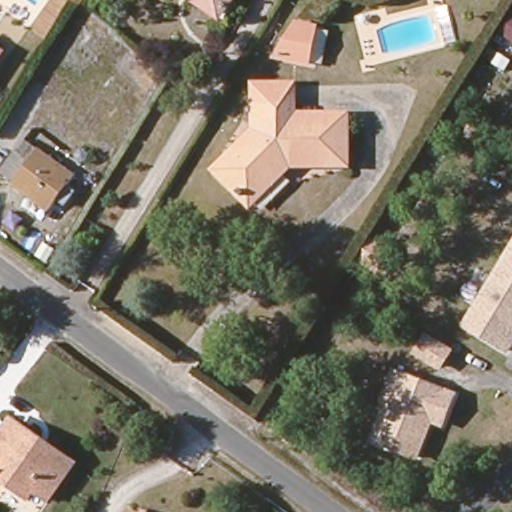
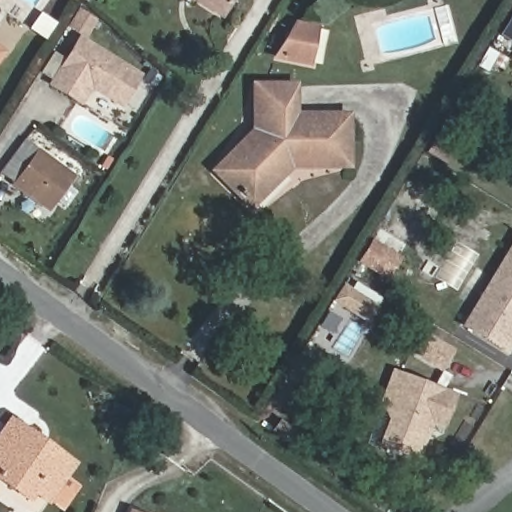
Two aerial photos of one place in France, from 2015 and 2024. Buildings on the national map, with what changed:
unchanged [(65,11),(71,0),(85,0),(90,3),(89,6),(80,20),(65,11)]
unchanged [(201,2),(198,0),(232,0),(222,16),(201,2)]
unchanged [(512,12),(512,42),(499,34),(512,12)]
unchanged [(297,52),(273,52),(293,20),(311,31),(297,52)]
new [(122,104),(91,85),(81,102),(52,85),(81,39),(139,76),(122,104)]
unchanged [(0,48),(4,50),(0,55),(0,48)]
unchanged [(349,167),(292,167),(252,207),(218,172),(257,132),(257,89),(296,88),(296,118),(349,118),(349,167)]
unchanged [(39,138),(29,132),(46,109),(55,115),(39,138)]
unchanged [(74,189),(62,205),(53,198),(46,207),(10,182),(11,181),(0,172),(0,167),(22,138),(71,174),(65,182),(74,189)]
unchanged [(512,239),(512,346),(507,355),(459,328),(512,239)]
new [(366,242),(381,251),(370,268),(356,259),(366,242)]
unchanged [(457,395),(446,428),(431,425),(418,462),(377,447),(388,421),(377,399),(391,371),(457,395)]
unchanged [(44,448),(47,443),(71,460),(45,498),(31,488),(25,497),(9,485),(0,479),(0,429),(6,421),(44,448)]

